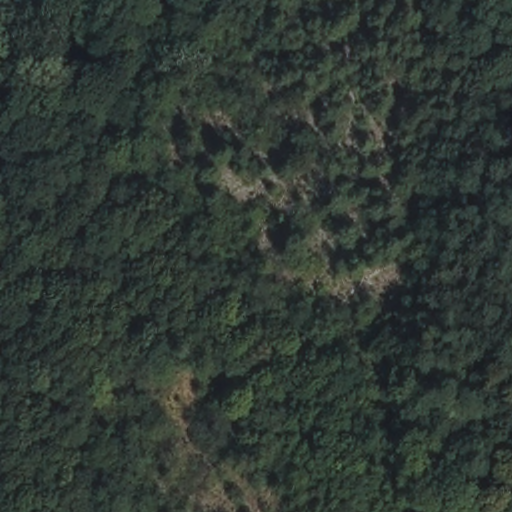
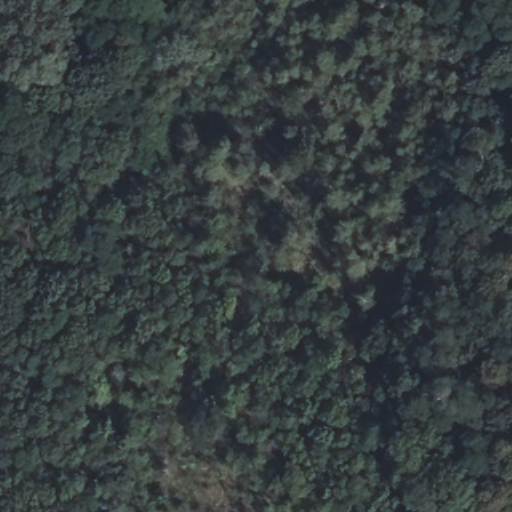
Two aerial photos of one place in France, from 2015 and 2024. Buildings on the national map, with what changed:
[]

